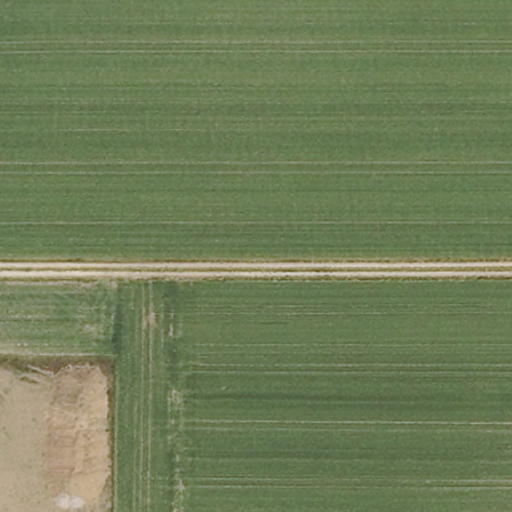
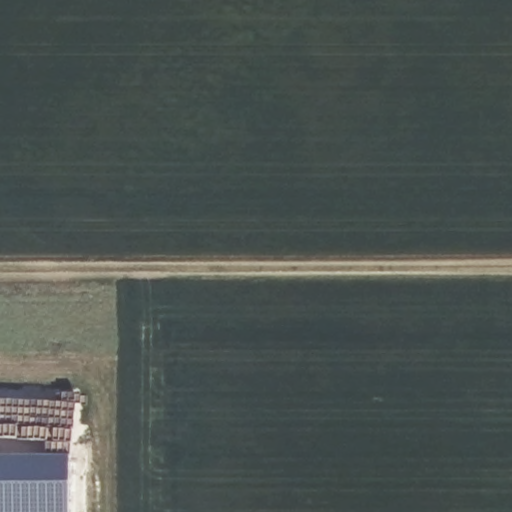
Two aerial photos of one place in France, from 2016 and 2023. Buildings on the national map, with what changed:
new [(70,512),(0,512),(0,456),(70,456),(70,512)]

